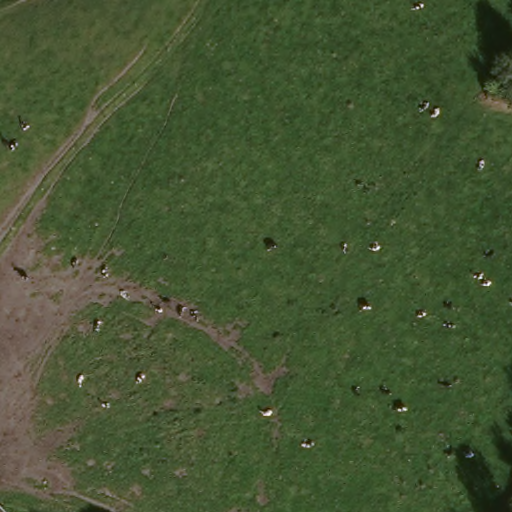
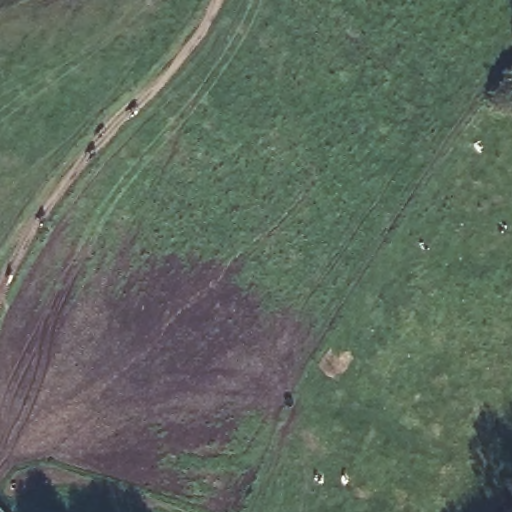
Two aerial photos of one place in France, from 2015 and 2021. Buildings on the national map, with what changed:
[]

